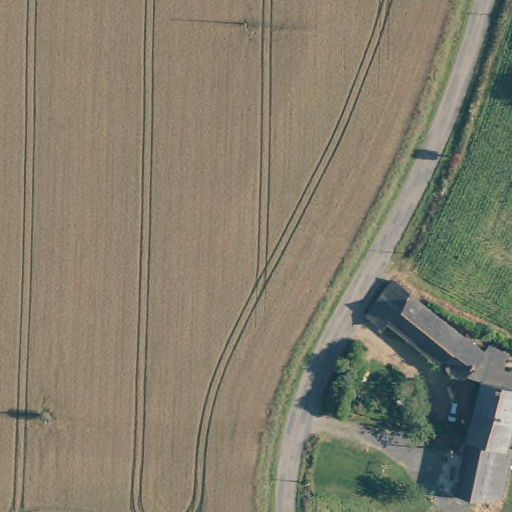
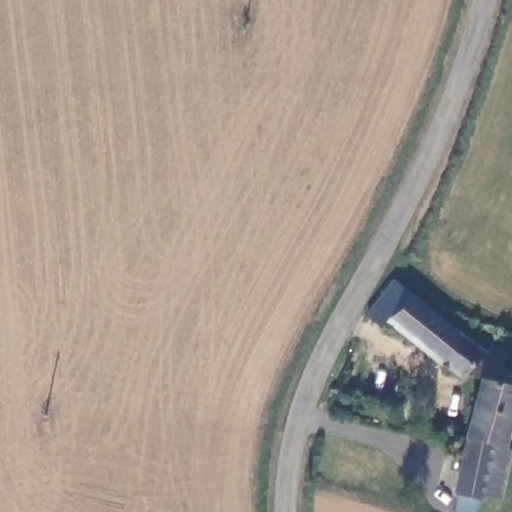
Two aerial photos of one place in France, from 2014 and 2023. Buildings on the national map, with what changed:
unchanged [(500,440),(471,432),(483,373),(471,371),(466,377),(390,315),(382,323),(369,310),(396,271),(402,277),(423,295),(489,349),(494,343),(505,353),(503,371),(512,373),(512,442),(511,443),(500,440)]
unchanged [(457,488),(471,432),(500,440),(511,443),(510,455),(512,455),(512,461),(508,475),(502,498),(501,502),(486,498),(484,504),(463,498),(455,496),(457,488)]

